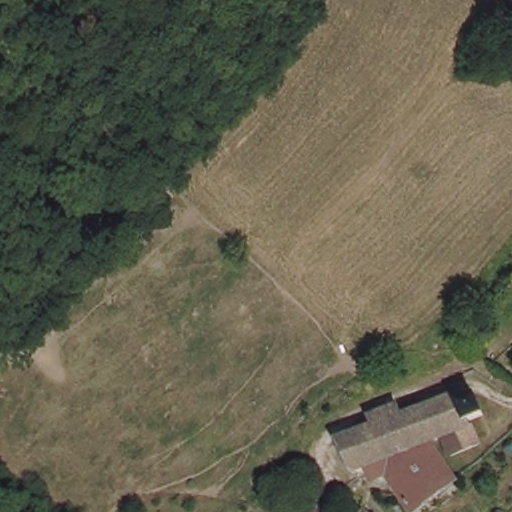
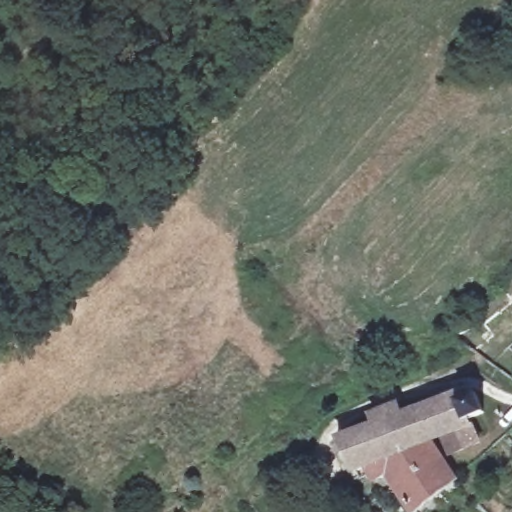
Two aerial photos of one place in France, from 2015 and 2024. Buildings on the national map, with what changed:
unchanged [(381,470),(378,471),(370,474),(362,477),(359,477),(342,440),(380,427),(377,417),(402,410),(406,419),(463,400),(466,406),(483,401),(490,421),(471,429),(479,452),(448,462),(441,449),(430,454),(381,470)]
unchanged [(381,470),(430,454),(455,486),(457,490),(427,512),(414,512),(394,478),(385,484),(372,478),(370,474),(378,471),(381,470)]
unchanged [(331,512),(307,512),(325,500),(331,512)]

